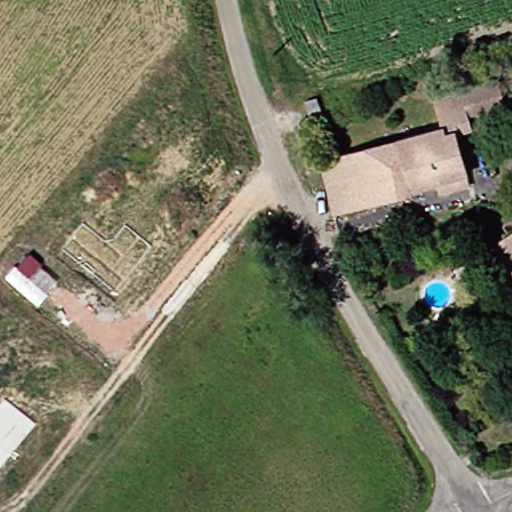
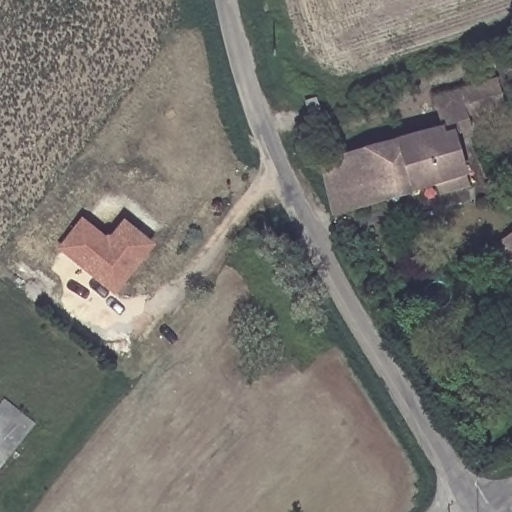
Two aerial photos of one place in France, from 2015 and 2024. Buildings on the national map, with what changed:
unchanged [(319,90),(339,85),(343,109),(344,114),(324,119),(319,90)]
unchanged [(508,109),(472,119),(476,132),(458,138),(468,181),(339,216),(325,161),(447,131),(439,101),(501,85),(508,109)]
new [(88,222),(109,240),(116,239),(128,225),(155,247),(119,292),(66,250),(88,222)]
unchanged [(497,245),(512,235),(512,269),(497,245)]

